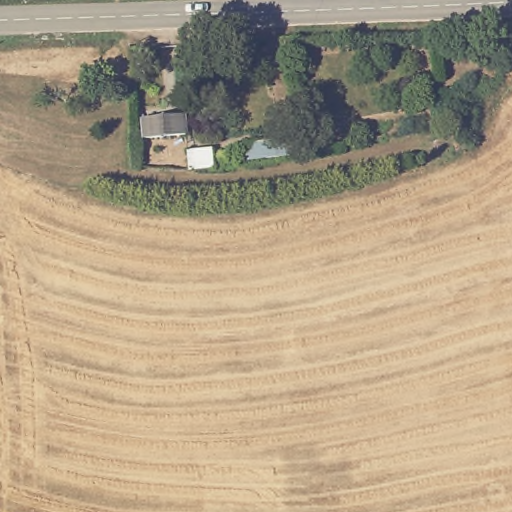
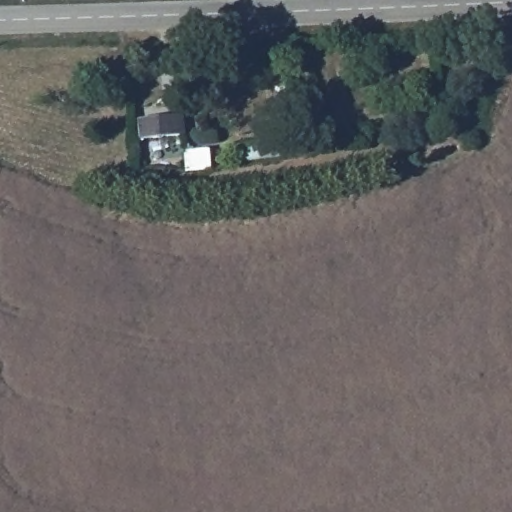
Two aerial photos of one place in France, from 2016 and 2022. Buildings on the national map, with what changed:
unchanged [(143,139),(142,119),(184,116),(185,136),(143,139)]
unchanged [(244,139),(309,134),(311,150),(247,161),(244,139)]

